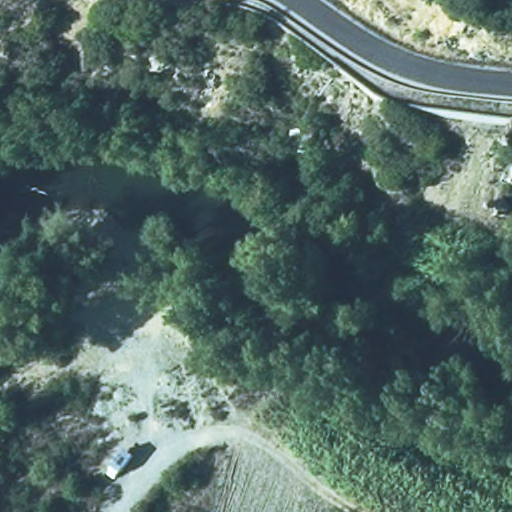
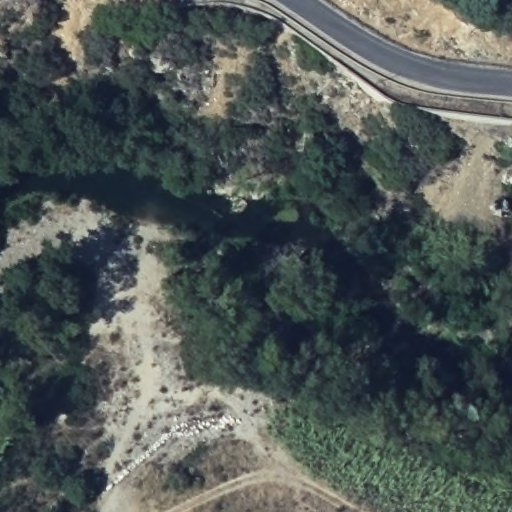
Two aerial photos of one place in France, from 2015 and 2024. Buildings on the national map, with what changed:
unchanged [(320,129),(317,149),(285,147),(288,122),(320,129)]

